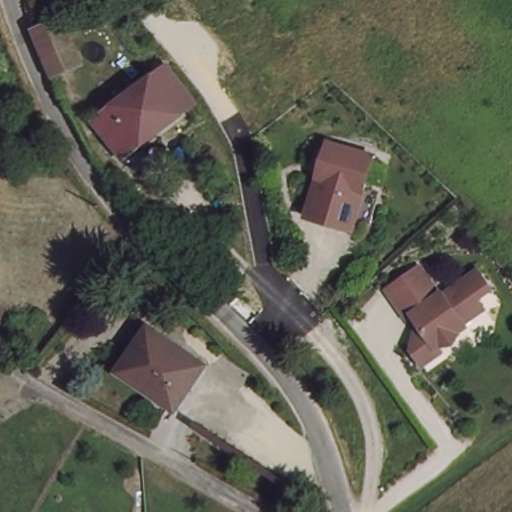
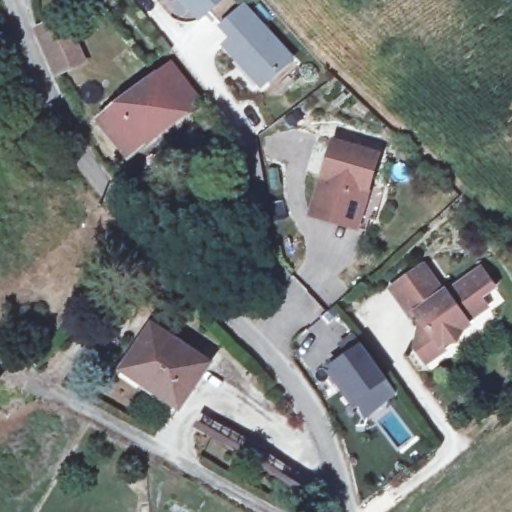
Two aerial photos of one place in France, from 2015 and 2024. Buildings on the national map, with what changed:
new [(179,0),(224,0),(200,22),(179,0)]
new [(292,64),(302,77),(280,95),(267,83),(259,89),(220,46),(228,40),(217,27),(221,24),(245,4),(296,60),(292,64)]
unchanged [(68,22),(84,65),(61,73),(45,27),(46,27),(66,16),(68,22)]
unchanged [(208,115),(197,120),(190,108),(126,152),(99,113),(172,64),(208,115)]
unchanged [(382,151),(361,227),(306,211),(327,136),(382,151)]
unchanged [(224,160),(213,169),(207,161),(218,152),(224,160)]
unchanged [(424,271),(445,292),(475,264),(488,282),(479,292),(484,300),(447,332),(407,286),(424,271)]
unchanged [(447,332),(442,337),(447,345),(435,355),(424,342),(424,326),(398,295),(407,286),(447,332)]
unchanged [(206,365),(176,411),(119,375),(149,330),(206,365)]
new [(353,334),(362,347),(364,345),(390,382),(387,383),(396,394),(363,420),(357,407),(351,410),(325,371),(331,366),(327,361),(342,350),(337,345),(353,334)]

